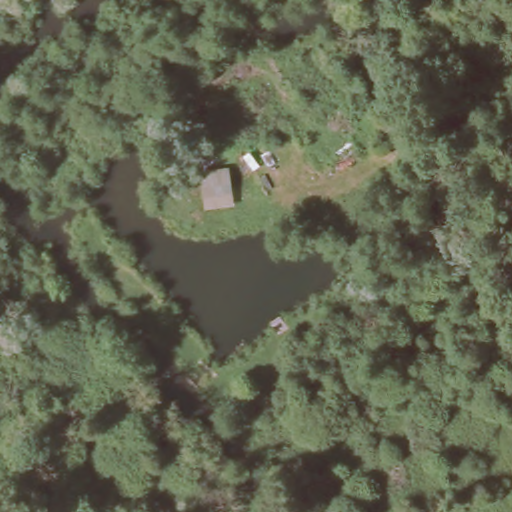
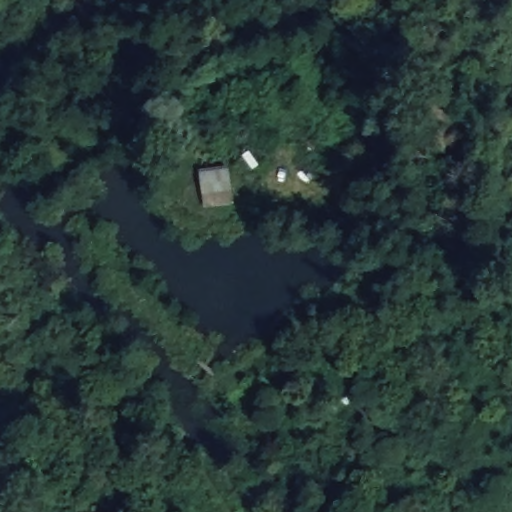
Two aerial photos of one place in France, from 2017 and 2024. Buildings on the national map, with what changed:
unchanged [(234,203),(205,207),(200,169),(229,165),(234,203)]

